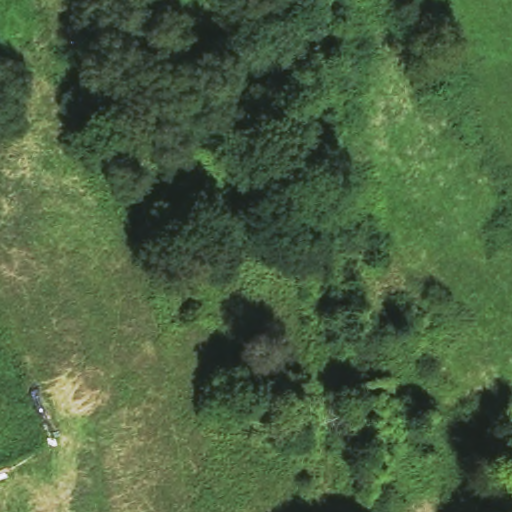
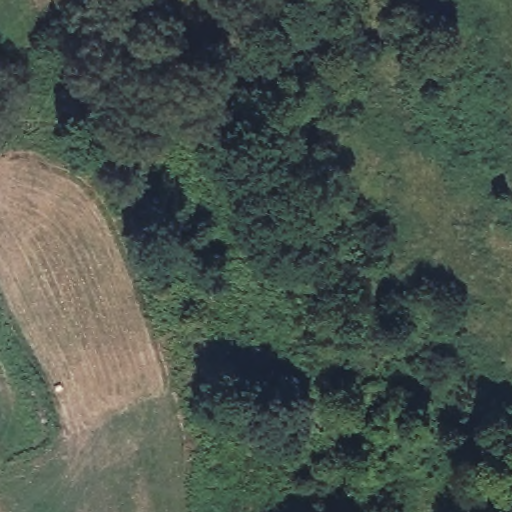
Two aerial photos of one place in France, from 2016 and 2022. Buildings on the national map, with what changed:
unchanged [(89,17),(99,31),(66,43),(60,20),(89,17)]

